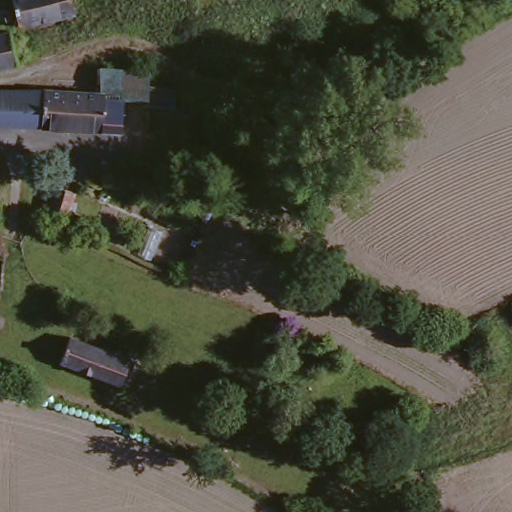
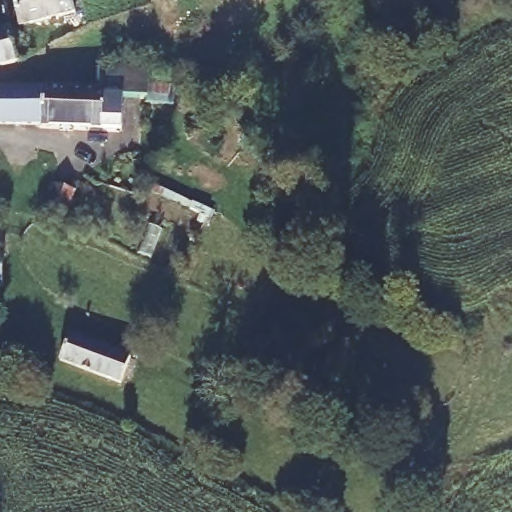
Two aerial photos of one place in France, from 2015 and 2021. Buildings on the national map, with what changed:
unchanged [(27,27),(19,0),(82,0),(85,11),(27,27)]
unchanged [(15,37),(34,34),(39,56),(0,65),(0,30),(14,27),(15,37)]
unchanged [(111,89),(114,67),(129,69),(162,72),(161,80),(173,82),(169,102),(132,97),(128,125),(122,126),(46,119),(49,83),(81,86),(111,89)]
unchanged [(0,110),(0,84),(2,84),(4,80),(49,83),(46,119),(0,115),(0,110)]
unchanged [(69,220),(66,230),(63,232),(60,231),(56,230),(56,227),(57,221),(59,218),(53,217),(58,192),(81,196),(76,222),(69,220)]
unchanged [(4,251),(9,252),(6,272),(5,286),(0,286),(0,233),(3,233),(4,251)]
unchanged [(69,332),(130,356),(120,380),(60,358),(69,332)]

